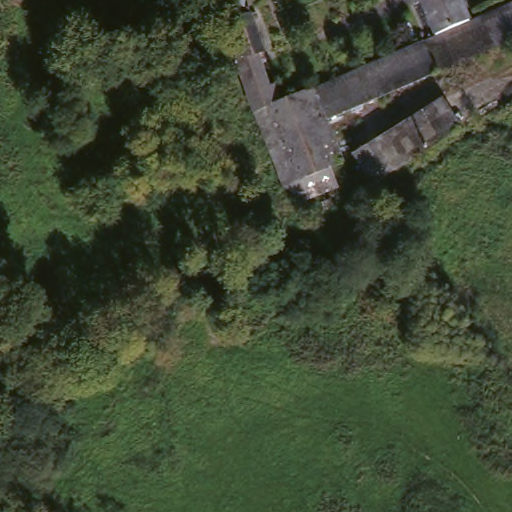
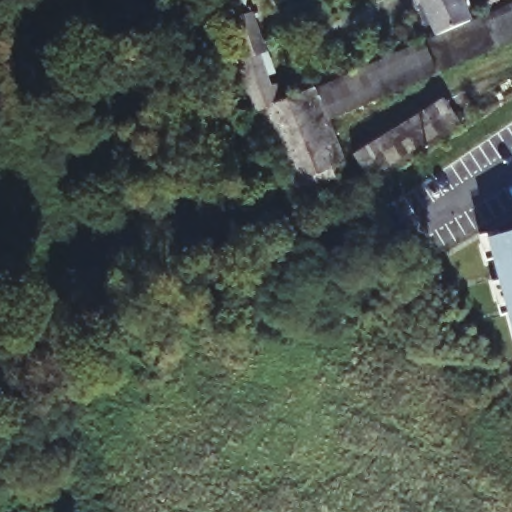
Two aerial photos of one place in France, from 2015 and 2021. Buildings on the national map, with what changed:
unchanged [(436,35),(421,2),(416,4),(414,0),(460,0),(469,21),(436,35)]
unchanged [(437,72),(423,40),(436,35),(469,21),(512,3),(512,40),(437,72)]
unchanged [(268,88),(277,87),(281,100),(254,112),(252,113),(234,61),(237,40),(239,17),(251,13),(265,52),(257,55),(268,88)]
unchanged [(281,100),(423,40),(437,72),(328,121),(345,163),(332,168),(339,187),(333,189),(308,199),(284,188),(254,112),(281,100)]
unchanged [(443,98),(463,128),(372,186),(352,155),(443,98)]
new [(512,234),(512,332),(487,240),(512,234)]

